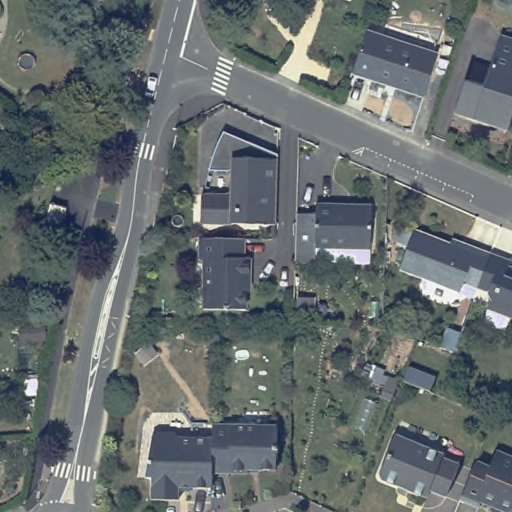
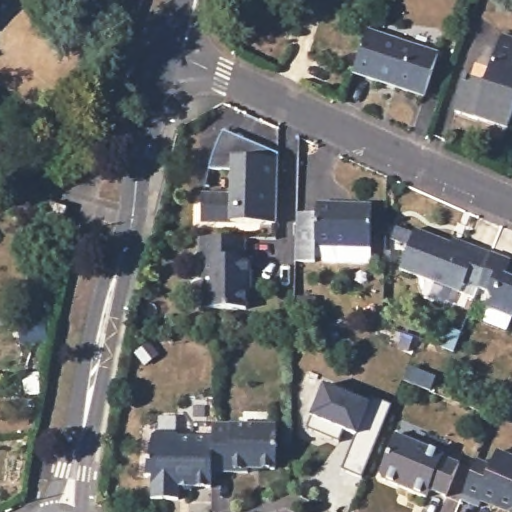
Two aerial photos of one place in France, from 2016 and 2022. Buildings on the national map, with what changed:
unchanged [(366,33),(373,36),(437,56),(424,99),(372,82),(352,74),(366,33)]
unchanged [(467,81),(486,88),(502,38),(512,41),(512,113),(506,131),(456,114),(467,81)]
unchanged [(213,189),(234,190),(235,165),(212,164),(213,158),(214,154),(215,150),(217,146),(218,142),(220,138),(223,133),(224,129),(228,124),(253,136),(281,149),(279,219),(204,216),(204,197),(205,189),(213,189)]
unchanged [(376,196),(374,254),(338,253),(338,239),(318,239),(317,250),(298,250),(299,242),(299,204),(319,205),(319,195),(376,196)]
unchanged [(50,204),(66,209),(62,225),(45,221),(50,204)]
unchanged [(483,289),(469,285),(465,294),(403,269),(418,231),(453,244),(456,237),(481,247),(497,254),(483,289)]
unchanged [(247,237),(247,256),(253,256),(253,276),(249,276),(248,307),(205,307),(207,257),(203,257),(203,237),(247,237)]
unchanged [(512,259),(512,319),(508,330),(484,321),(492,298),(489,292),(483,289),(497,254),(512,259)]
new [(309,417),(322,385),(366,401),(370,397),(389,405),(360,479),(338,470),(351,437),(339,433),(338,444),(303,430),(309,417)]
unchanged [(211,423),(274,423),(274,467),(247,467),(247,471),(210,470),(211,436),(211,423)]
unchanged [(178,489),(178,498),(150,498),(150,476),(144,476),(151,436),(156,431),(173,431),(178,436),(211,436),(210,470),(210,486),(190,486),(190,489),(178,489)]
unchanged [(398,433),(446,453),(444,456),(461,463),(448,496),(431,489),(428,496),(411,489),(412,486),(401,482),(400,484),(384,478),(382,473),(398,433)]
unchanged [(512,456),(512,511),(512,512),(501,507),(499,501),(486,495),(482,506),(464,498),(474,474),(479,461),(493,467),(500,451),(512,456)]

